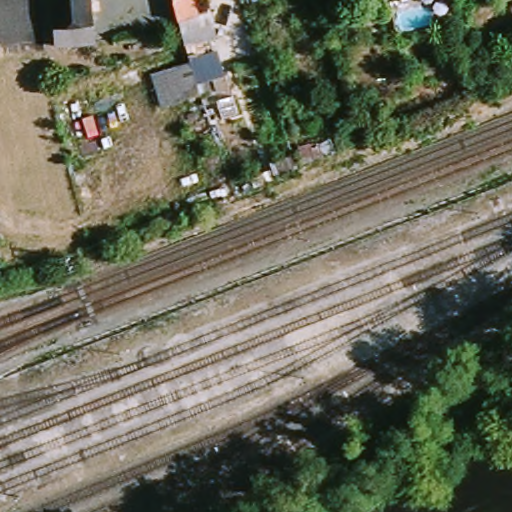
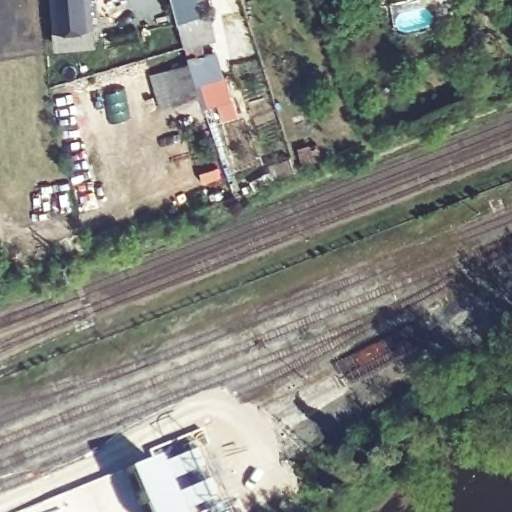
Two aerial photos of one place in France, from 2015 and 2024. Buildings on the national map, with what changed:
unchanged [(89,22),(54,23),(52,0),(87,0),(89,22)]
unchanged [(175,24),(168,0),(198,0),(202,13),(203,19),(175,24)]
unchanged [(175,24),(203,19),(202,13),(209,11),(217,37),(202,42),(205,53),(216,50),(223,74),(226,73),(240,112),(220,122),(212,105),(207,108),(202,94),(192,62),(182,24),(175,24)]
unchanged [(154,73),(192,62),(202,94),(163,105),(154,73)]
new [(150,456),(153,463),(179,454),(187,470),(200,465),(218,505),(210,509),(210,510),(207,512),(132,512),(116,471),(150,456)]

